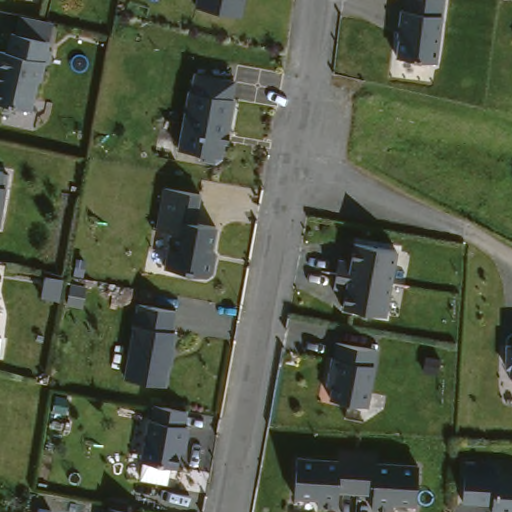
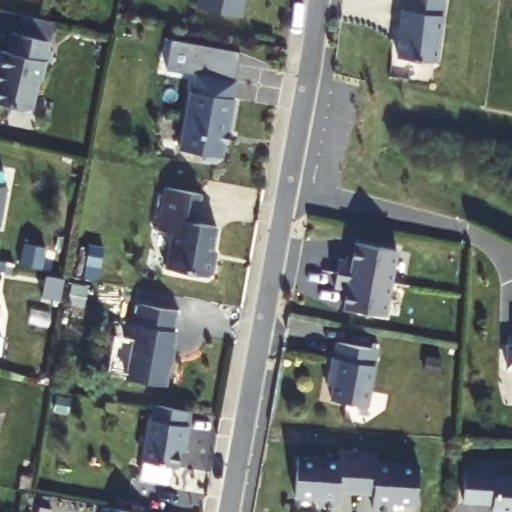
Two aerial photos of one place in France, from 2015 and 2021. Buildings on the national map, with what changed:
unchanged [(248,0),(244,16),(195,0),(248,0)]
unchanged [(403,8),(404,0),(444,0),(437,60),(393,52),(398,7),(403,8)]
unchanged [(58,50),(53,49),(49,69),(46,69),(40,98),(1,90),(7,59),(4,58),(8,39),(16,41),(20,21),(57,29),(56,38),(61,39),(58,50)]
new [(197,71),(196,74),(167,68),(172,41),(241,53),(233,82),(197,71)]
unchanged [(237,83),(218,159),(178,149),(197,71),(237,83)]
unchanged [(7,172),(5,187),(0,209),(0,171),(2,171),(7,172)]
unchanged [(204,200),(199,223),(217,228),(209,277),(168,266),(174,237),(157,232),(167,192),(204,200)]
unchanged [(397,258),(388,317),(342,309),(353,247),(397,258)]
unchanged [(177,312),(167,387),(127,379),(140,306),(177,312)]
unchanged [(511,325),(512,326),(512,369),(508,367),(511,325)]
unchanged [(378,353),(367,408),(324,398),(333,345),(378,353)]
unchanged [(188,415),(180,469),(142,462),(152,410),(188,415)]
unchanged [(413,509),(367,505),(367,495),(337,495),(335,509),(291,504),(291,459),(415,466),(413,509)]
unchanged [(512,471),(512,511),(509,509),(459,498),(462,468),(512,471)]
unchanged [(116,512),(106,512),(107,510),(116,512)]

